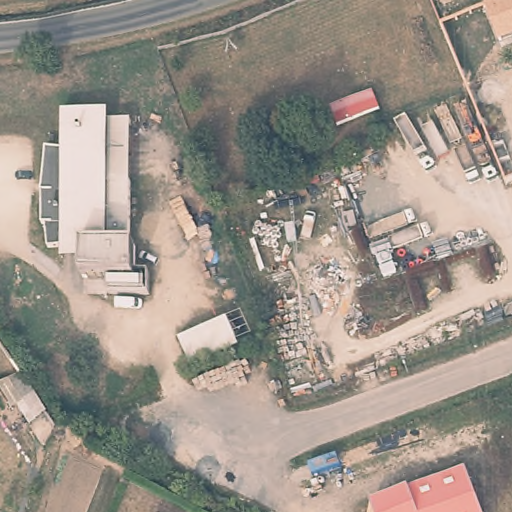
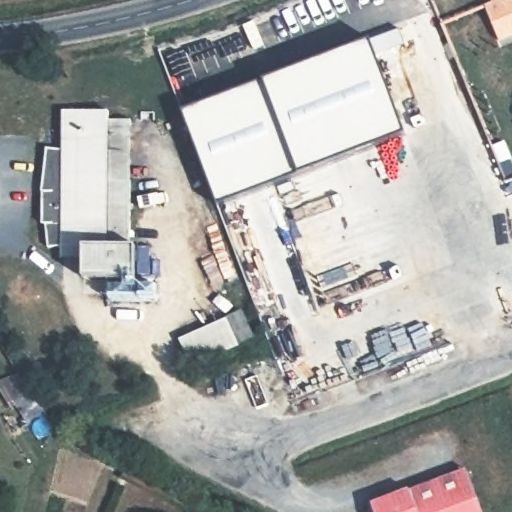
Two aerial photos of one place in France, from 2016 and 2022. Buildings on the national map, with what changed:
unchanged [(495,44),(488,26),(482,8),(503,0),(512,0),(512,37),(495,44)]
new [(366,27),(402,122),(213,194),(177,99),(366,27)]
unchanged [(138,248),(138,280),(86,279),(86,259),(66,259),(67,247),(51,249),(48,225),(45,225),(44,183),(49,149),(66,151),(66,112),(112,113),(112,121),(111,182),(134,183),(132,240),(132,247),(138,248)]
unchanged [(183,334),(231,313),(242,340),(195,360),(183,334)]
unchanged [(368,512),(373,502),(375,503),(392,497),(467,468),(484,512),(368,512)]

